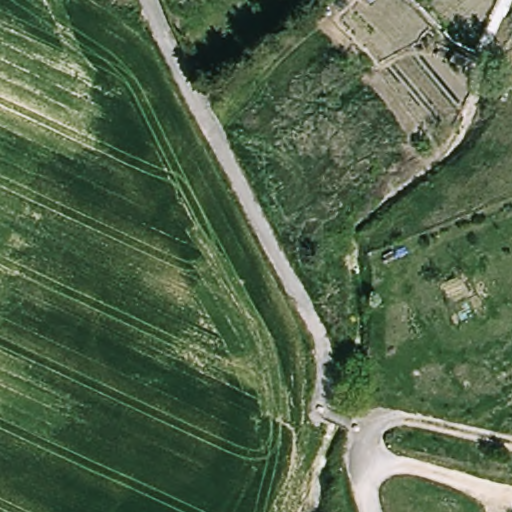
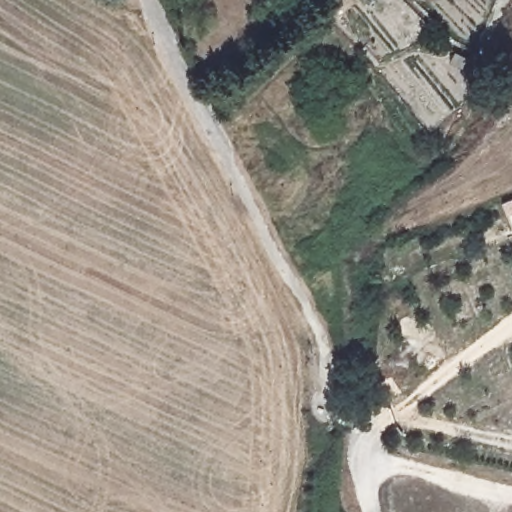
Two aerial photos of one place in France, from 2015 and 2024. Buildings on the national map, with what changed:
[]

